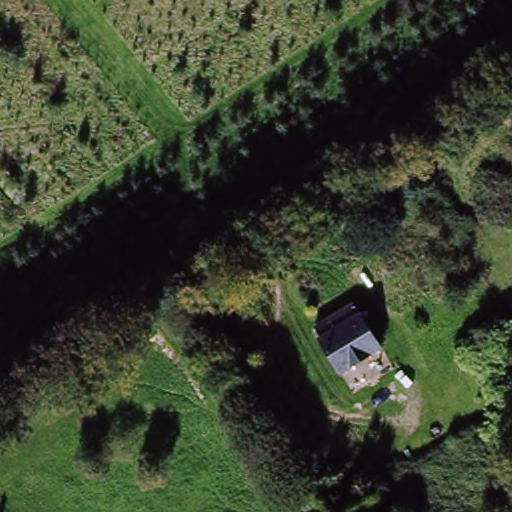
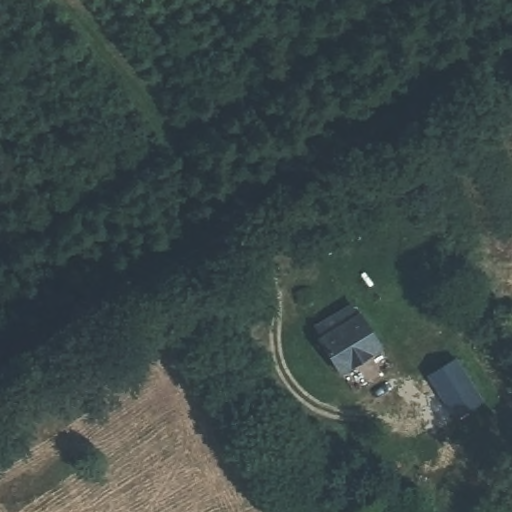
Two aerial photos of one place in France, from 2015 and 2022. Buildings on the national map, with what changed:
unchanged [(338,383),(324,361),(328,359),(321,348),(348,329),(361,320),(368,331),(383,353),(338,383)]
new [(454,363),(483,403),(460,421),(431,380),(454,363)]

